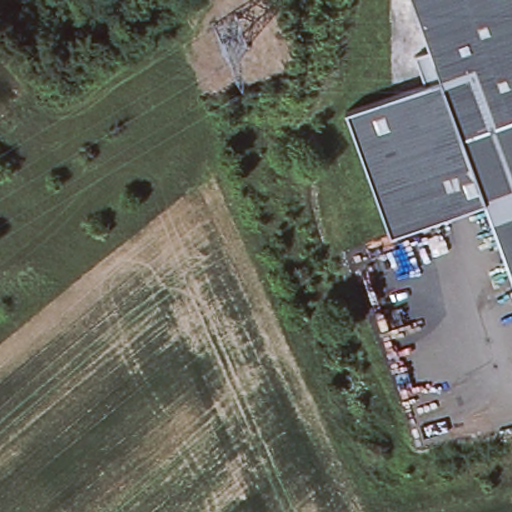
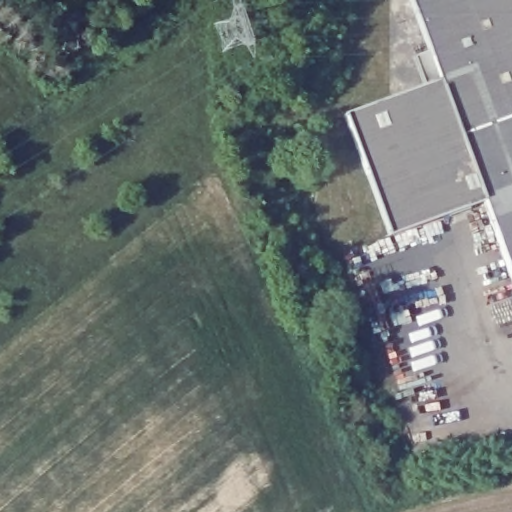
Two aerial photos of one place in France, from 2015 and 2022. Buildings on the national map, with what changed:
unchanged [(512,0),(512,299),(477,203),(433,80),(405,0),(512,0)]
unchanged [(384,236),(340,115),(433,80),(477,203),(384,236)]

